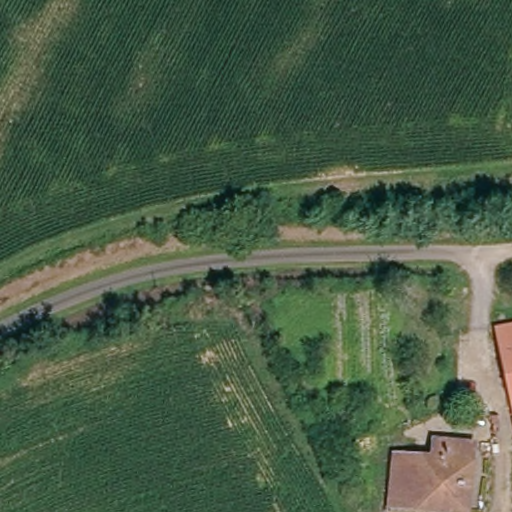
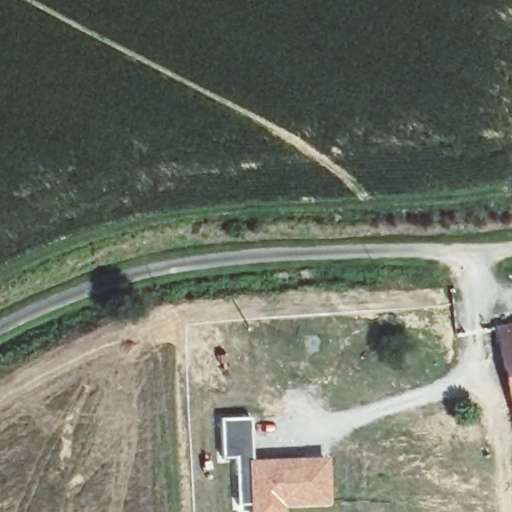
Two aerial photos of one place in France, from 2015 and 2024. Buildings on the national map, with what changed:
unchanged [(512,323),(512,412),(495,325),(512,323)]
new [(252,416),(253,458),(248,458),(249,505),(237,505),(233,460),(222,461),(219,416),(252,416)]
demolished [(392,456),(388,456),(390,436),(403,437),(400,460),(448,465),(450,445),(470,447),(463,512),(450,512),(387,505),(392,456)]
new [(430,455),(430,437),(476,442),(470,512),(424,512),(387,508),(392,452),(419,455),(430,455)]
new [(327,456),(328,505),(283,508),(283,512),(250,512),(249,505),(248,458),(253,458),(327,456)]

